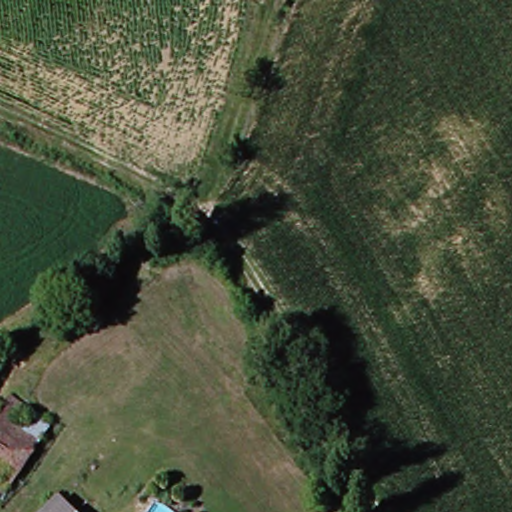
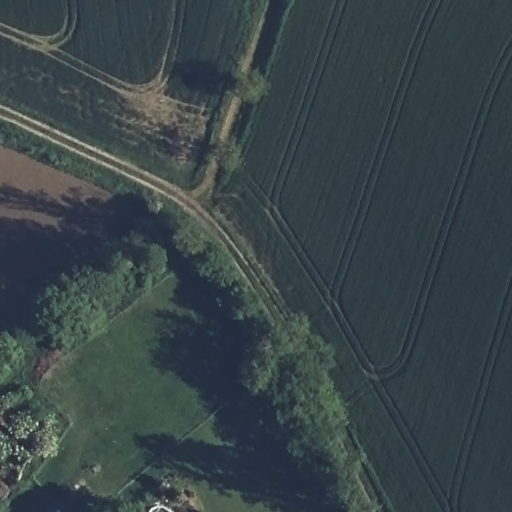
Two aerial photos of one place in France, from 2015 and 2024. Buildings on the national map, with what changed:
unchanged [(0,417),(9,422),(23,398),(42,410),(67,423),(57,440),(25,497),(0,481),(0,417)]
unchanged [(65,503),(74,512),(57,512),(65,503)]

